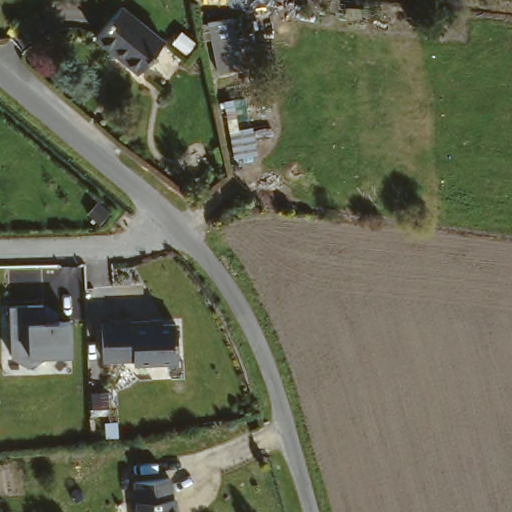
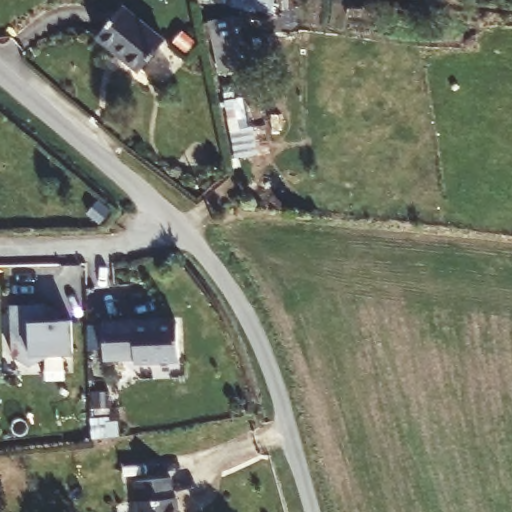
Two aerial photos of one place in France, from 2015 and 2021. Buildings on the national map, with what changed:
unchanged [(122,0),(167,35),(142,68),(95,31),(120,0),(122,0)]
unchanged [(222,29),(225,78),(201,79),(197,29),(222,29)]
unchanged [(8,305),(44,305),(44,318),(71,319),(73,351),(46,352),(32,366),(8,354),(8,305)]
unchanged [(107,317),(155,317),(155,321),(180,320),(180,357),(137,358),(137,354),(107,354),(107,317)]
unchanged [(136,486),(169,483),(171,502),(175,501),(176,512),(138,512),(136,486)]

